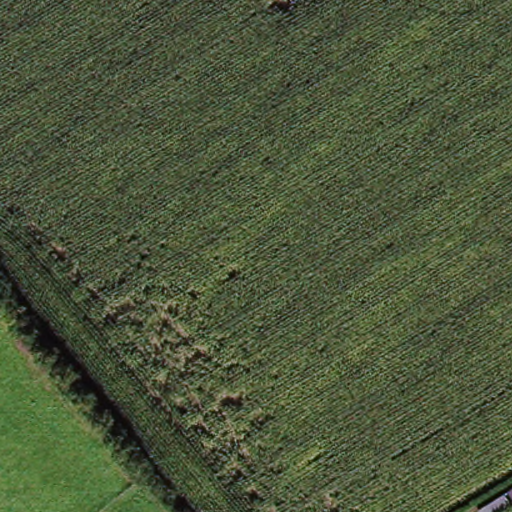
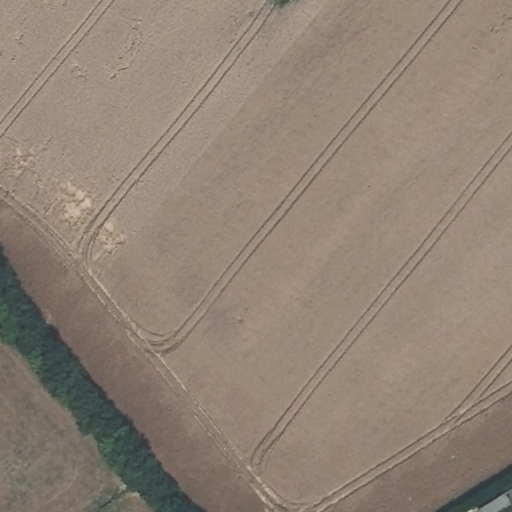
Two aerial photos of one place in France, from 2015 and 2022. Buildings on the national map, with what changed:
unchanged [(499,512),(496,512),(492,499),(512,493),(512,508),(499,512)]

